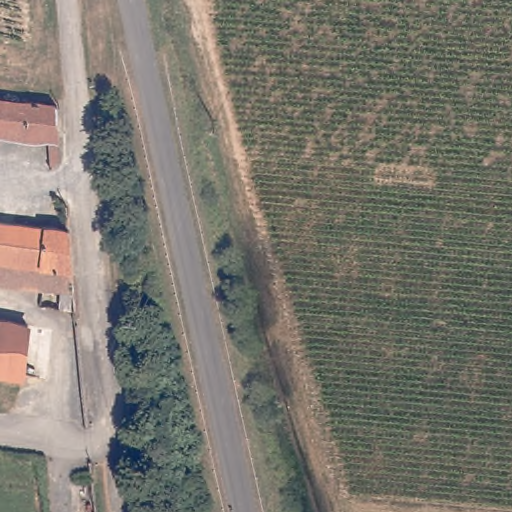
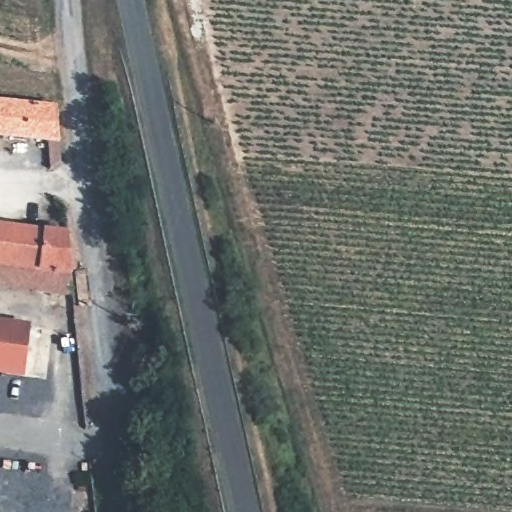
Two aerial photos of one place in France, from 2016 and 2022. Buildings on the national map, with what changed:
unchanged [(60,142),(0,137),(0,102),(56,107),(60,142)]
unchanged [(28,292),(0,288),(0,225),(33,229),(41,231),(68,234),(74,298),(36,293),(28,292)]
unchanged [(27,322),(23,372),(0,369),(0,318),(27,322)]

